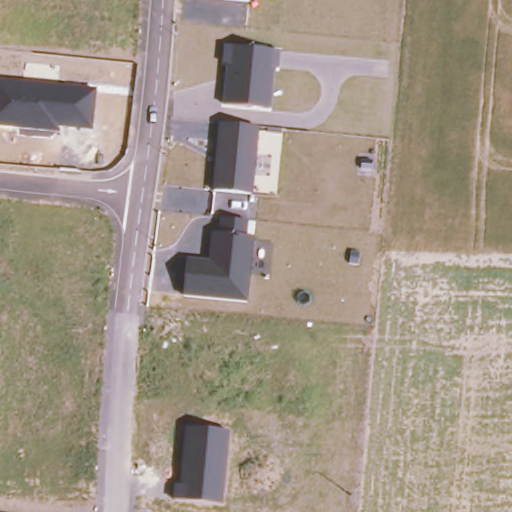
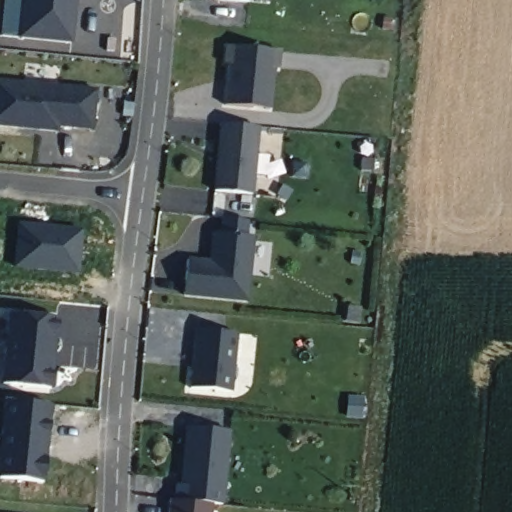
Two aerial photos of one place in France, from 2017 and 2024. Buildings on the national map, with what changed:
new [(22,0),(74,0),(70,42),(18,37),(22,0)]
unchanged [(248,2),(234,0),(248,0),(248,2)]
unchanged [(278,50),(277,68),(273,68),(269,109),(225,104),(228,64),(224,63),(226,45),(278,50)]
unchanged [(60,127),(59,133),(0,126),(0,81),(97,89),(93,131),(60,127)]
unchanged [(220,123),(257,126),(250,194),(213,191),(220,123)]
unchanged [(183,294),(187,257),(208,260),(210,232),(218,232),(220,217),(248,220),(247,235),(255,236),(248,302),(183,294)]
new [(17,221),(83,230),(79,275),(12,268),(17,221)]
new [(2,384),(10,313),(55,317),(47,388),(2,384)]
new [(235,333),(230,392),(192,389),(195,331),(235,333)]
new [(0,478),(0,458),(5,401),(52,406),(44,482),(0,478)]
unchanged [(230,429),(223,503),(211,503),(178,499),(183,427),(230,429)]
new [(167,512),(168,498),(178,499),(211,503),(210,512),(167,512)]

